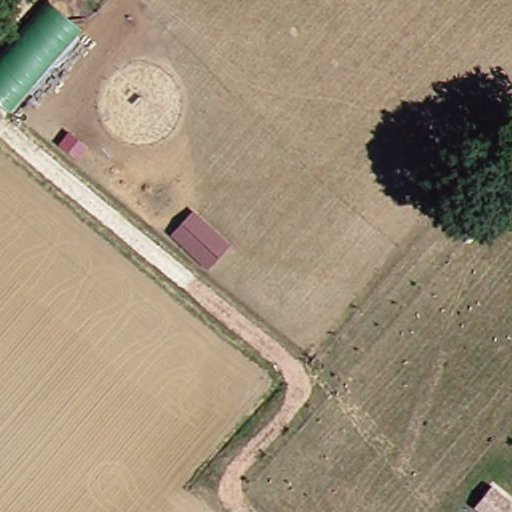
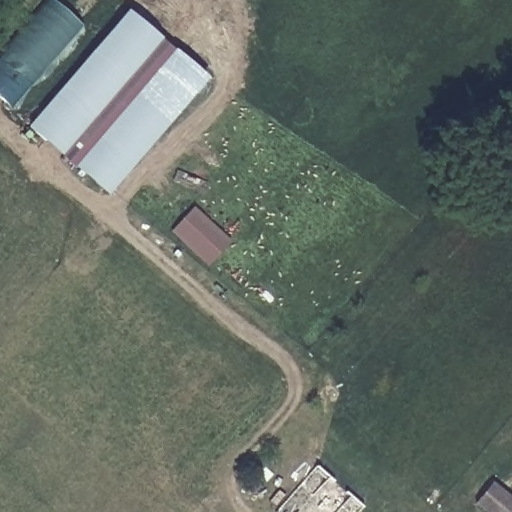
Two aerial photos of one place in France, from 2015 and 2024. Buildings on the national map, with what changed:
new [(0,101),(0,55),(46,0),(52,0),(82,27),(11,109),(0,101)]
new [(26,130),(126,12),(208,80),(107,198),(26,130)]
new [(231,240),(207,265),(171,231),(195,208),(231,240)]
new [(359,512),(275,512),(314,465),(362,509),(359,512)]
unchanged [(497,481),(512,494),(512,512),(493,512),(481,501),(497,481)]

